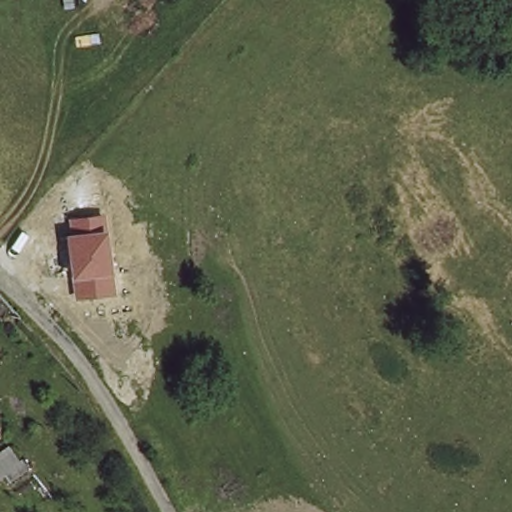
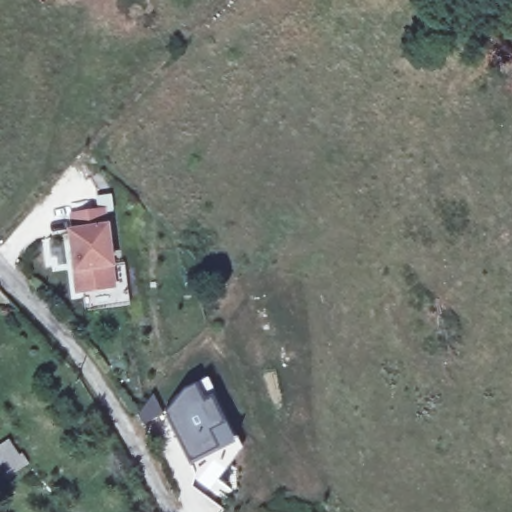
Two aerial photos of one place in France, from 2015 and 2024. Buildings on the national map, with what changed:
unchanged [(72,295),(64,231),(68,231),(66,216),(103,210),(114,290),(72,295)]
new [(162,411),(179,390),(203,377),(239,448),(224,468),(212,459),(208,450),(187,461),(162,411)]
new [(150,394),(160,414),(140,424),(135,414),(150,394)]
unchanged [(8,481),(4,477),(0,478),(0,446),(7,441),(28,466),(8,481)]

